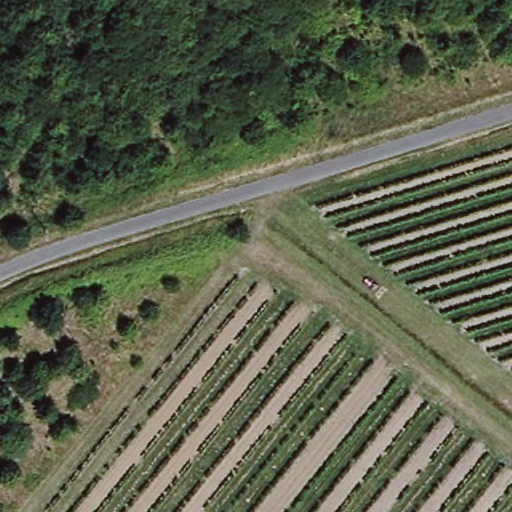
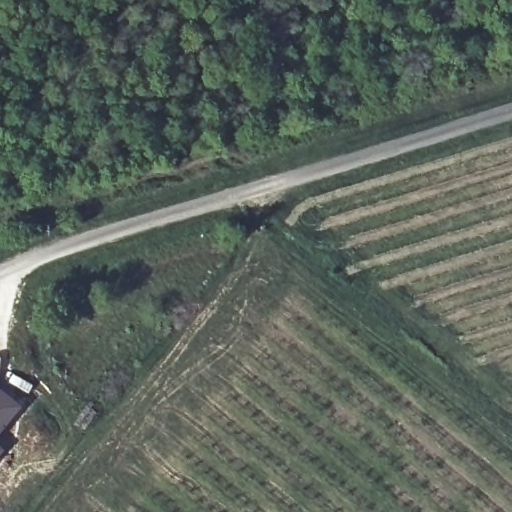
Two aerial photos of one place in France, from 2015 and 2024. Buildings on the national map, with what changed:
new [(0,432),(0,388),(21,405),(0,432)]
new [(0,454),(0,446),(4,449),(0,454)]

